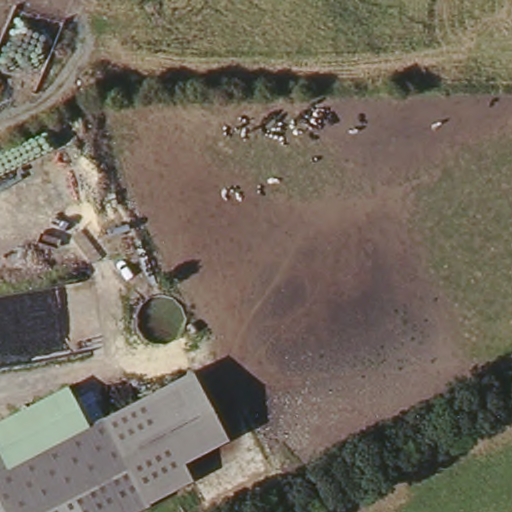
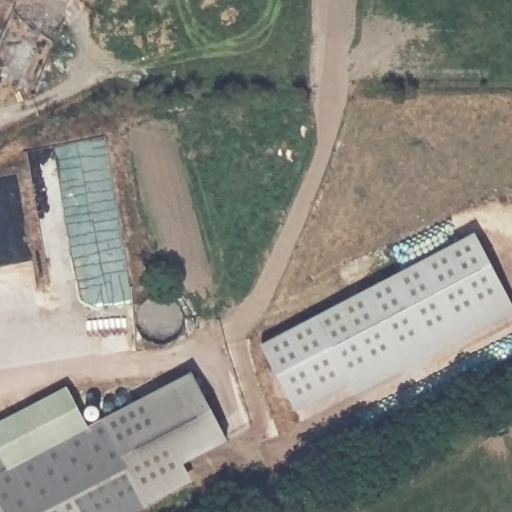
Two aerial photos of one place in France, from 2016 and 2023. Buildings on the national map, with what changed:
new [(472,230),(512,306),(512,312),(301,421),(258,345),(472,230)]
unchanged [(195,371),(228,439),(184,461),(194,481),(134,512),(0,512),(0,470),(6,466),(195,371)]
unchanged [(88,425),(6,466),(0,454),(0,421),(68,386),(88,425)]
unchanged [(0,470),(0,454),(6,466),(0,470)]

